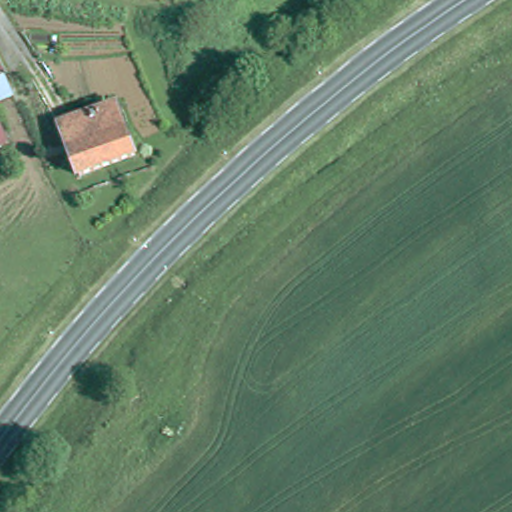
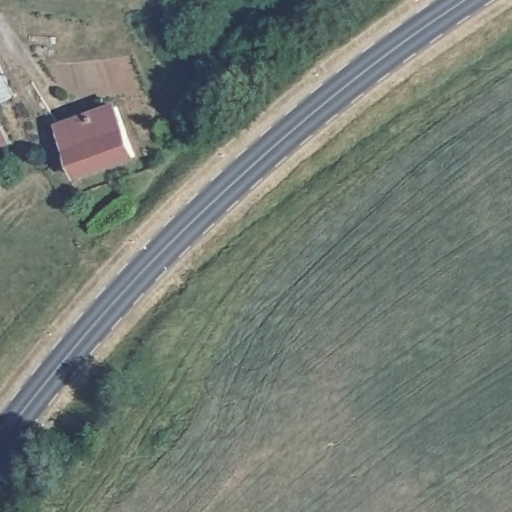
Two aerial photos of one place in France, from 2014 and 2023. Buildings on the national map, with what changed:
unchanged [(0,99),(0,64),(13,94),(0,99)]
unchanged [(82,174),(63,124),(119,106),(136,156),(82,174)]
unchanged [(0,146),(0,114),(12,141),(0,146)]

